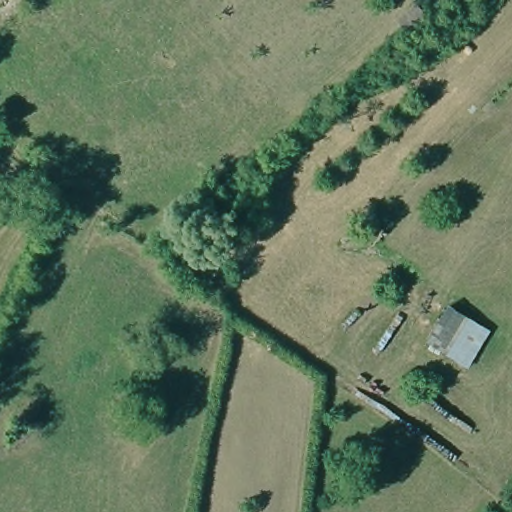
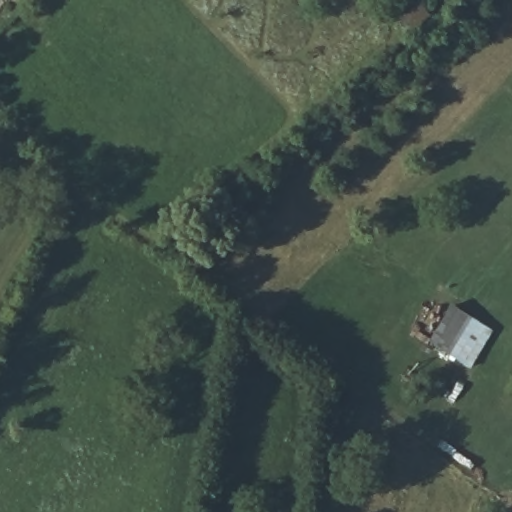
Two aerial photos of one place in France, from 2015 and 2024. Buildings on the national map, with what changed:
unchanged [(470,368),(434,344),(454,310),(492,335),(470,368)]

